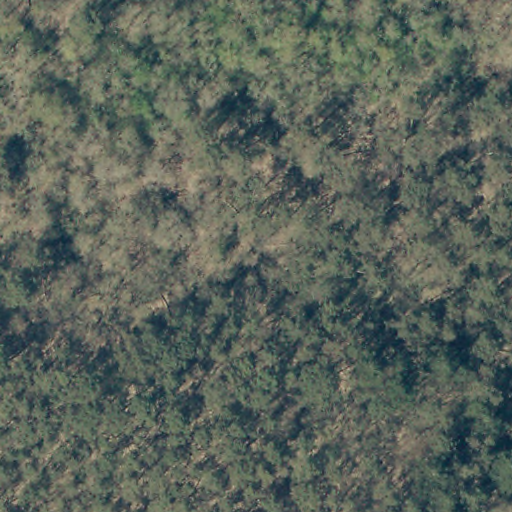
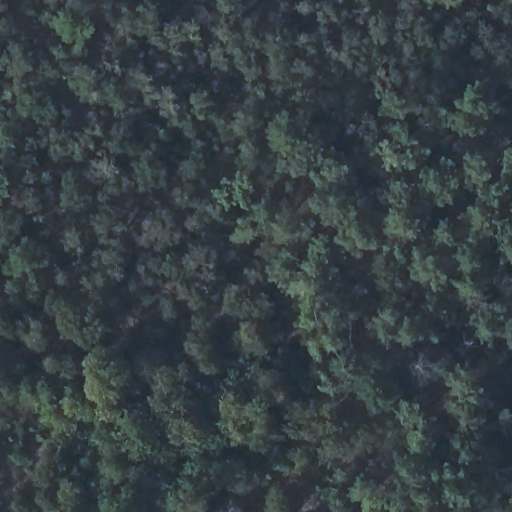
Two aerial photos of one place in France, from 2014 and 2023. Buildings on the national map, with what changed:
[]

